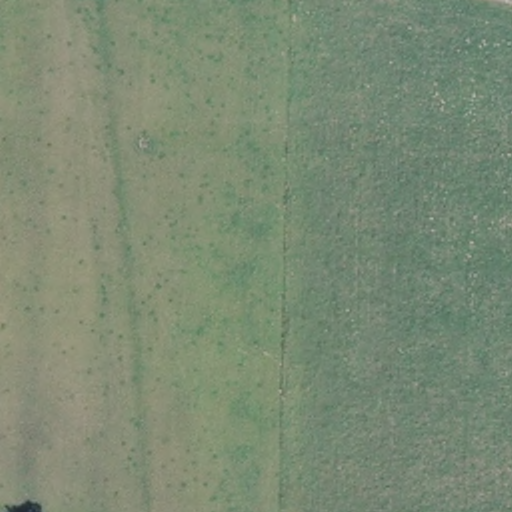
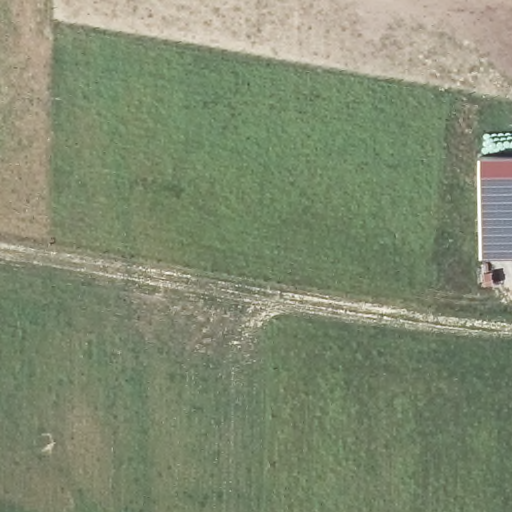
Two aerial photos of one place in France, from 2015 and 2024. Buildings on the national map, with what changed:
new [(512,154),(512,258),(481,258),(480,154),(512,154)]

